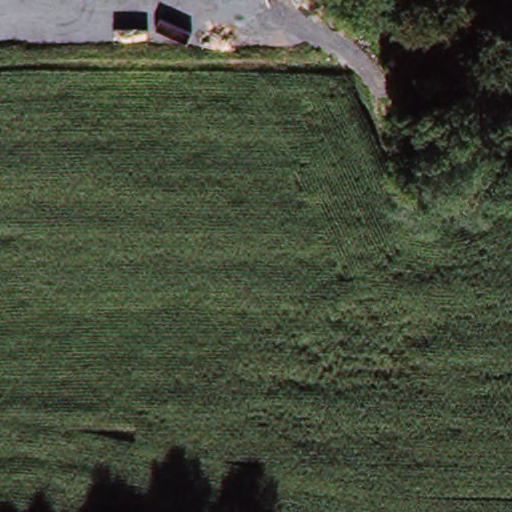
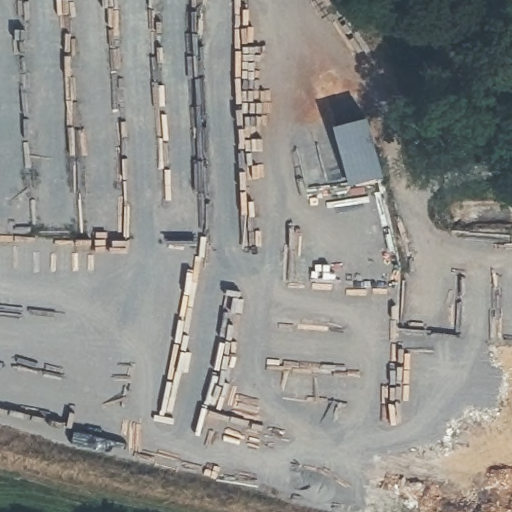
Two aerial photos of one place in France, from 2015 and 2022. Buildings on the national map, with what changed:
new [(365,112),(381,173),(347,182),(330,122),(365,112)]

